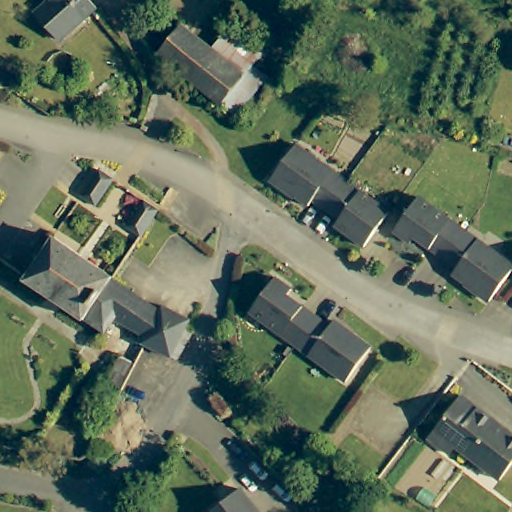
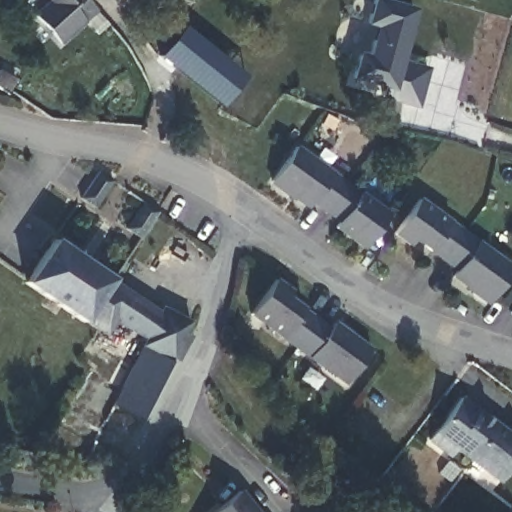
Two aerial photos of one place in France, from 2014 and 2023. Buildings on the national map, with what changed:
unchanged [(96,9),(63,40),(56,33),(35,11),(46,0),(87,0),(96,9)]
new [(404,60),(431,68),(419,108),(381,96),(384,88),(350,79),(358,50),(369,54),(375,29),(366,25),(373,0),(384,0),(416,9),(404,60)]
unchanged [(240,76),(217,105),(157,57),(181,30),(240,76)]
unchanged [(389,212),(361,250),(334,229),(339,222),(312,199),(306,205),(271,177),(285,158),(297,141),(389,212)]
unchanged [(114,177),(96,201),(81,190),(99,165),(114,177)]
unchanged [(511,265),(487,297),(481,304),(445,277),(448,267),(410,239),(404,245),(387,233),(391,226),(398,216),(413,194),(511,265)]
unchanged [(156,210),(142,231),(132,222),(144,202),(156,210)]
unchanged [(100,330),(84,321),(23,274),(54,235),(111,276),(129,289),(111,315),(100,330)]
unchanged [(293,291),(289,298),(325,329),(331,322),(368,351),(341,389),(247,312),(274,276),(293,291)]
unchanged [(159,310),(155,315),(184,325),(181,336),(188,337),(179,365),(143,353),(146,345),(141,338),(111,315),(129,289),(159,310)]
unchanged [(512,436),(512,466),(500,482),(456,448),(450,456),(430,440),(462,398),(512,436)]
unchanged [(210,512),(238,490),(256,512),(210,512)]

